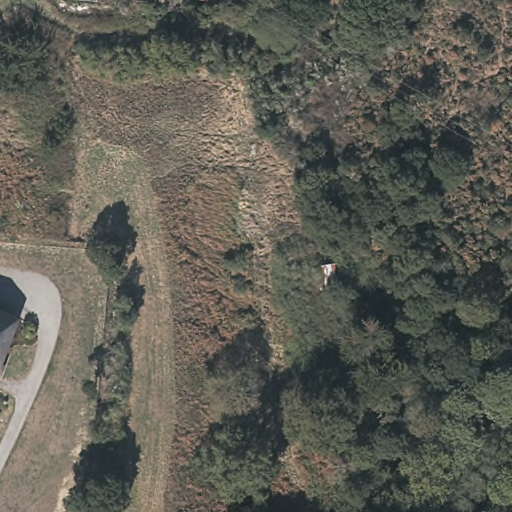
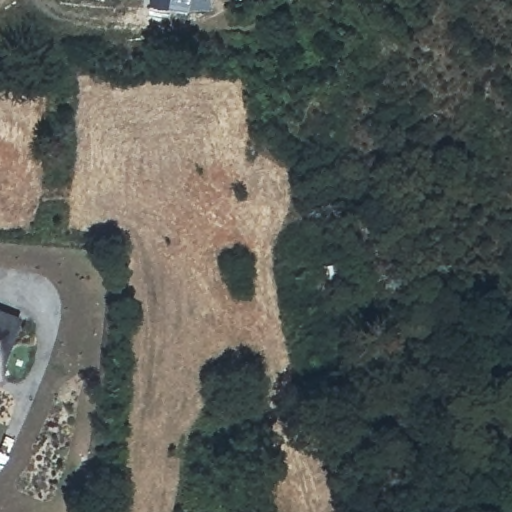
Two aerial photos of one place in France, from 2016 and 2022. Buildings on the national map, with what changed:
unchanged [(155,9),(156,0),(174,0),(174,10),(155,9)]
unchanged [(342,287),(320,290),(317,265),(339,263),(342,287)]
unchanged [(0,316),(14,322),(0,358),(0,316)]

